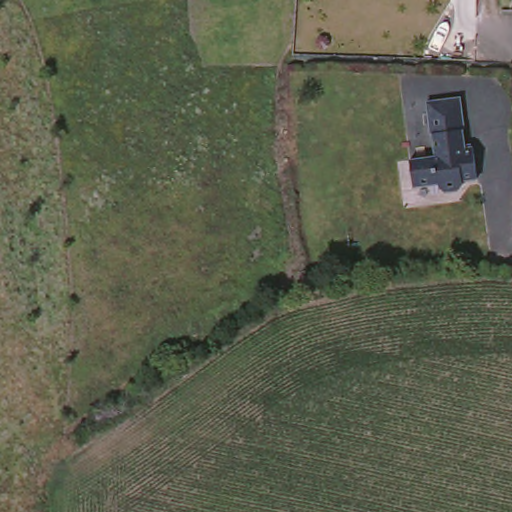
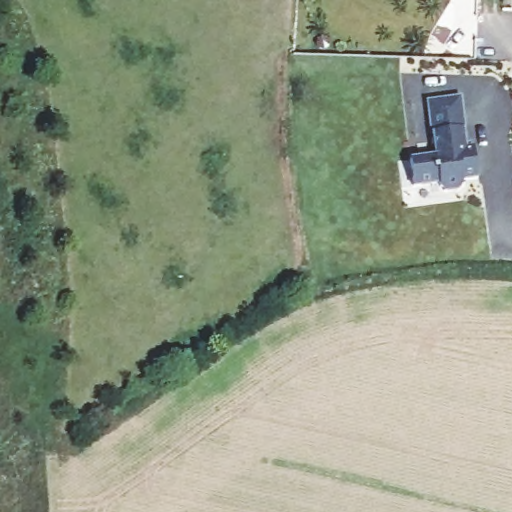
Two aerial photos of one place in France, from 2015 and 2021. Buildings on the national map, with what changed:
unchanged [(459,103),(465,134),(461,135),(462,144),(463,146),(465,149),(471,153),(476,181),(463,184),(463,194),(441,196),(439,190),(416,190),(410,164),(435,162),(435,141),(430,142),(425,108),(459,103)]

